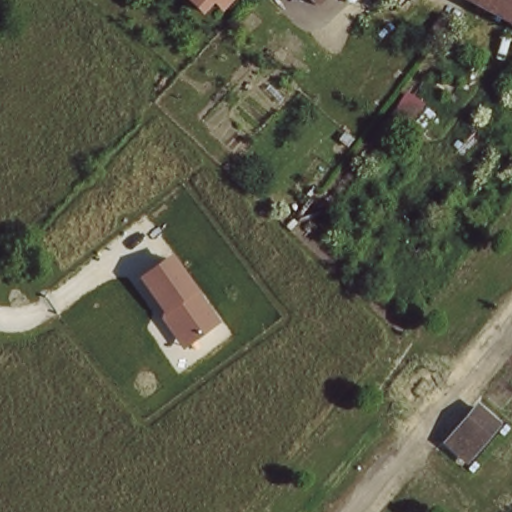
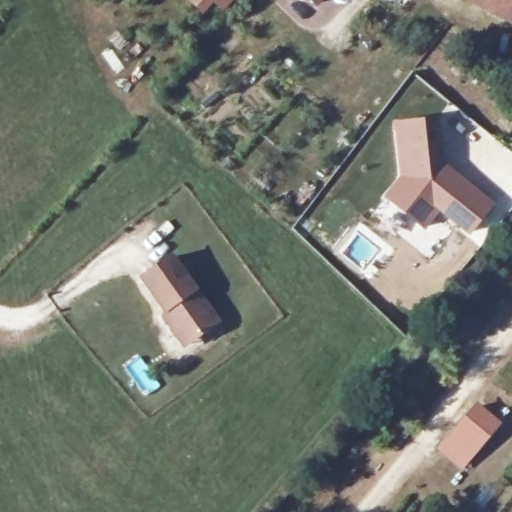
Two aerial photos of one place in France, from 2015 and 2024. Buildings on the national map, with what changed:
new [(213,2),(203,13),(189,0),(232,0),(223,10),(213,2)]
unchanged [(299,0),(324,0),(311,12),(299,0)]
unchanged [(496,26),(503,10),(482,0),(512,0),(512,33),(496,26)]
new [(424,232),(380,200),(398,177),(391,122),(438,117),(443,161),(495,202),(468,237),(438,212),(424,232)]
unchanged [(221,322),(186,347),(139,277),(172,254),(221,322)]
unchanged [(450,442),(455,437),(476,410),(498,426),(477,453),(472,460),(450,442)]

